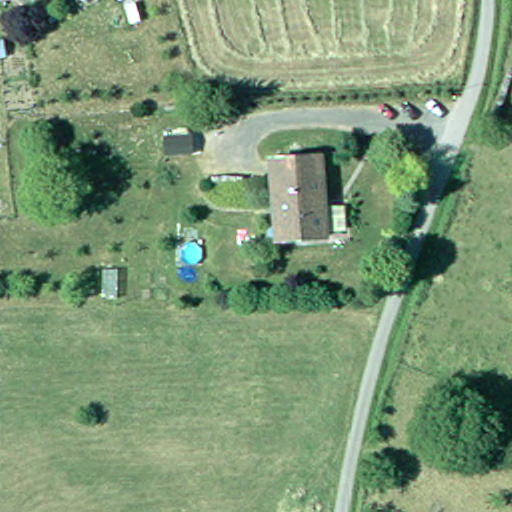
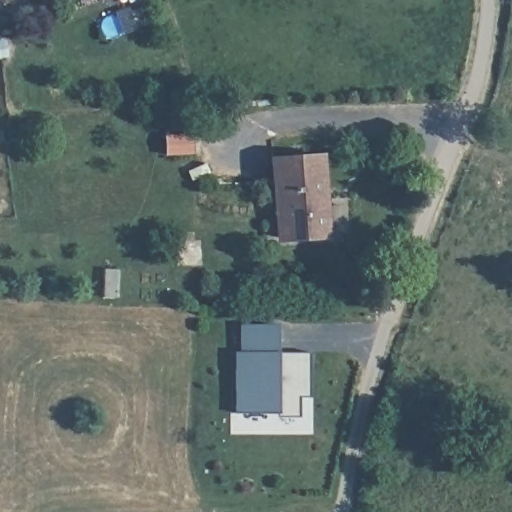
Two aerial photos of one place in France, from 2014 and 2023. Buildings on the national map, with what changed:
unchanged [(277,239),(272,159),(319,156),(325,236),(277,239)]
new [(308,396),(297,396),(297,416),(275,415),(233,414),(233,352),(237,352),(237,325),(276,325),(276,352),(307,353),(308,396)]

